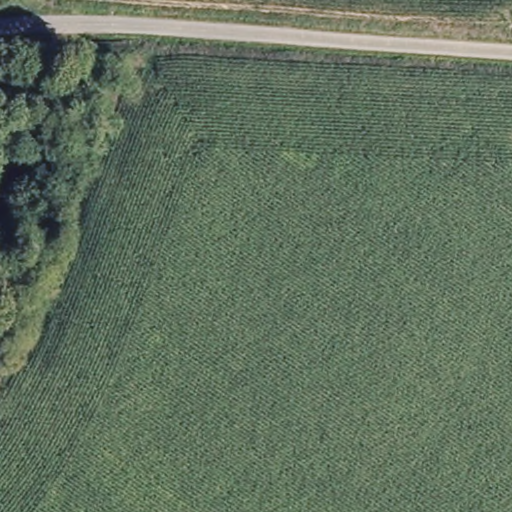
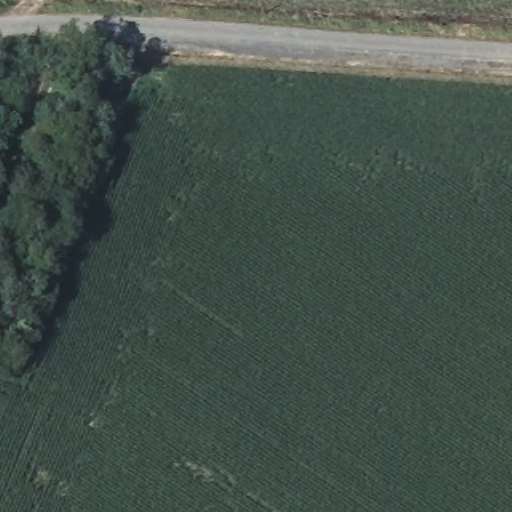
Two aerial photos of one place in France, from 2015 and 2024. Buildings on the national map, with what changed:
[]

